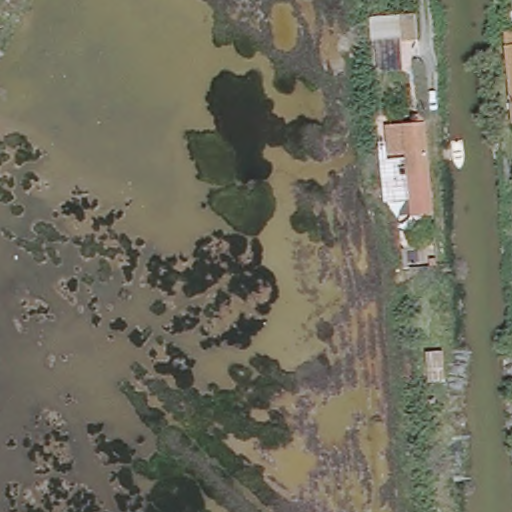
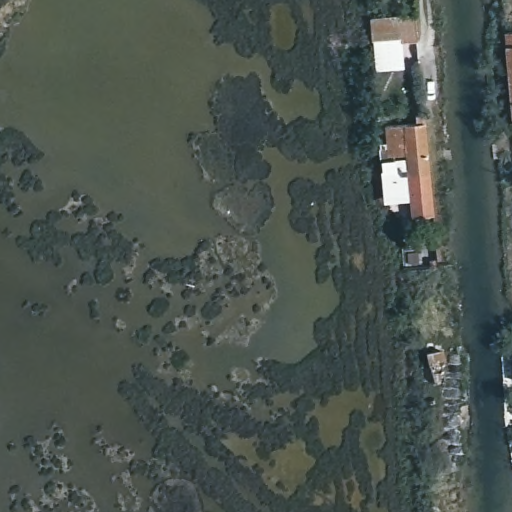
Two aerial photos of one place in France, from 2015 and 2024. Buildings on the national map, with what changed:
unchanged [(398,13),(418,9),(419,37),(401,39),(398,13)]
unchanged [(504,35),(512,34),(512,126),(504,35)]
unchanged [(426,123),(426,125),(401,128),(408,200),(384,202),(380,143),(387,142),(386,126),(426,123)]
unchanged [(401,128),(426,125),(432,215),(409,217),(401,128)]
unchanged [(425,385),(422,354),(443,354),(444,385),(425,385)]

